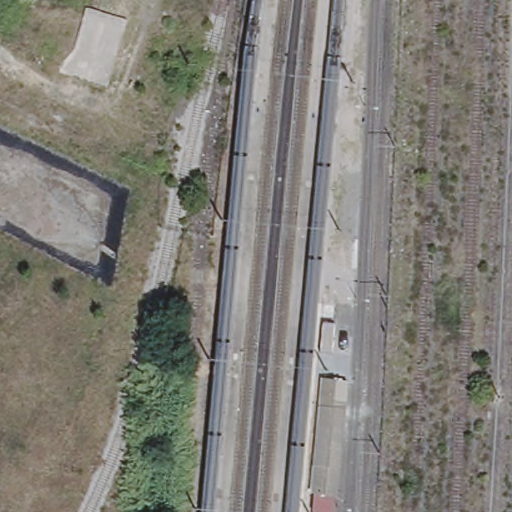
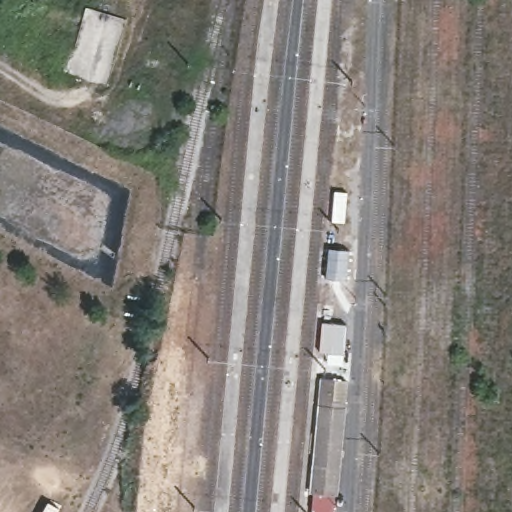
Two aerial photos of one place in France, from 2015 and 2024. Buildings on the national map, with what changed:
unchanged [(337,304),(335,328),(334,328),(334,330),(322,329),(321,328),(320,327),(322,303),(336,304),(337,304)]
unchanged [(336,377),(334,399),(346,400),(338,494),(336,494),(314,493),(312,492),(321,376),(336,377)]
unchanged [(314,511),(312,510),(314,493),(336,494),(334,512),(313,512),(314,511)]

